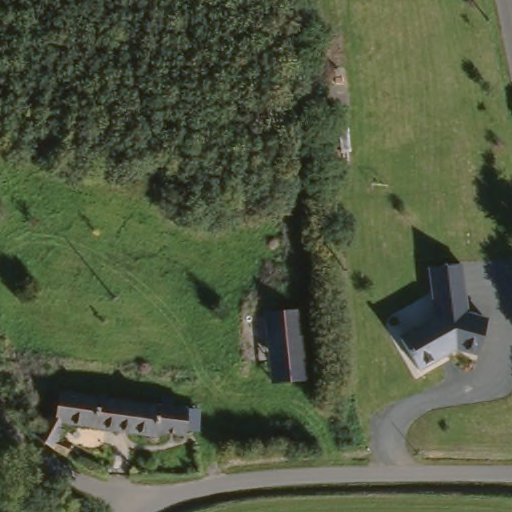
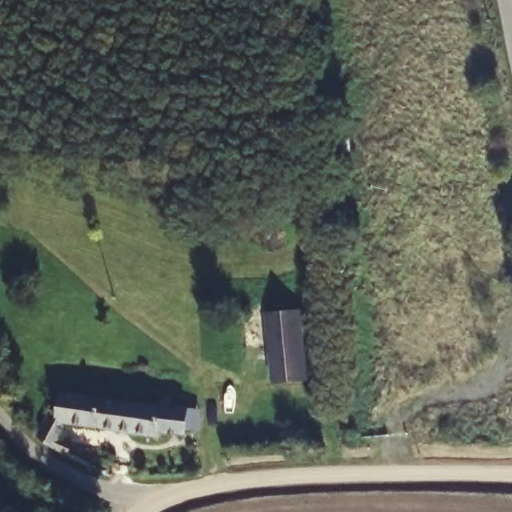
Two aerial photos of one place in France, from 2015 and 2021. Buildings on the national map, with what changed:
demolished [(428,266),(460,265),(462,317),(482,324),(470,357),(447,349),(406,365),(392,333),(430,317),(428,266)]
unchanged [(292,313),(300,313),(300,360),(293,360),(282,360),(282,344),(264,343),(264,312),(292,313)]
unchanged [(300,380),(293,380),(263,380),(264,343),(282,344),(282,360),(293,360),(300,360),(300,380)]
unchanged [(182,404),(182,429),(175,430),(153,429),(152,435),(66,427),(65,436),(72,436),(71,452),(26,444),(31,418),(47,418),(50,398),(173,404),(182,404)]

